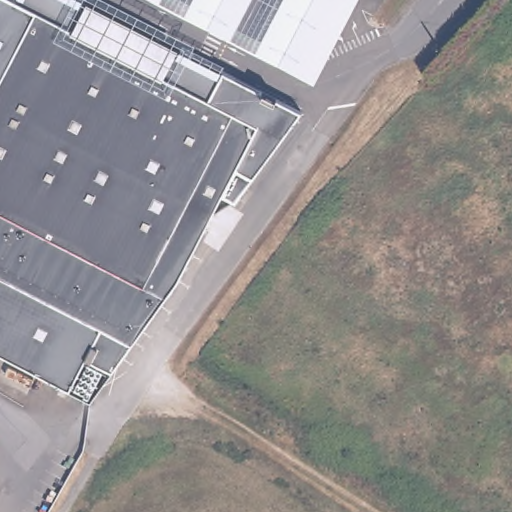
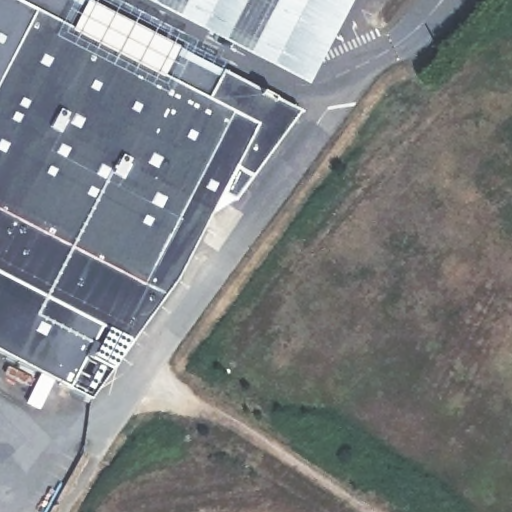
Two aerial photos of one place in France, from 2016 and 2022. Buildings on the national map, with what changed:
unchanged [(222,191),(178,278),(165,295),(134,337),(90,399),(0,349),(0,0),(86,0),(225,71),(301,110),(235,197),(222,191)]
unchanged [(158,0),(357,0),(315,81),(158,0)]

